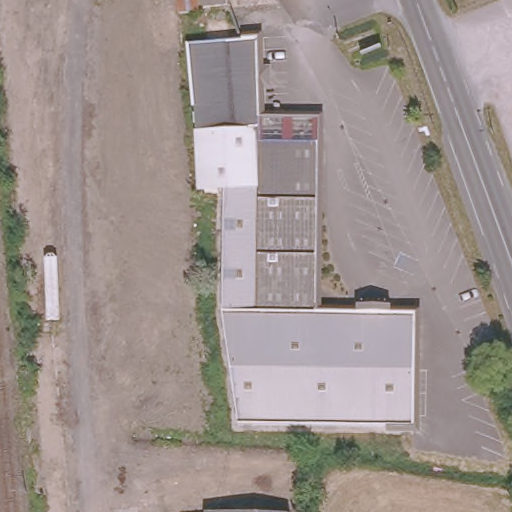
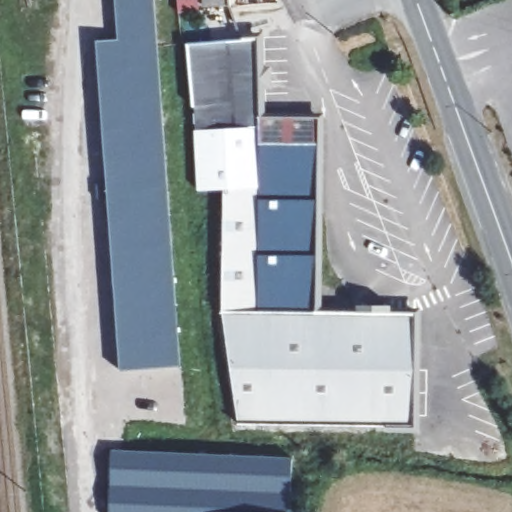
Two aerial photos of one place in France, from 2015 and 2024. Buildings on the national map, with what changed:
new [(117,39),(114,0),(154,0),(181,364),(121,368),(96,40),(117,39)]
unchanged [(400,311),(426,312),(420,427),(220,417),(202,304),(209,183),(190,182),(177,38),(249,33),(251,66),(261,65),(262,83),(252,84),(255,114),(314,109),(327,308),(367,309),(367,302),(401,304),(400,311)]
new [(290,512),(108,512),(112,449),(291,457),(290,512)]
demolished [(229,479),(177,482),(175,466),(228,462),(229,479)]
demolished [(154,512),(135,512),(135,494),(154,494),(154,512)]

